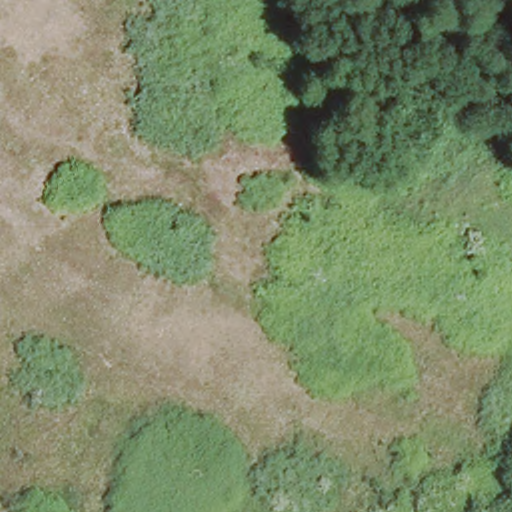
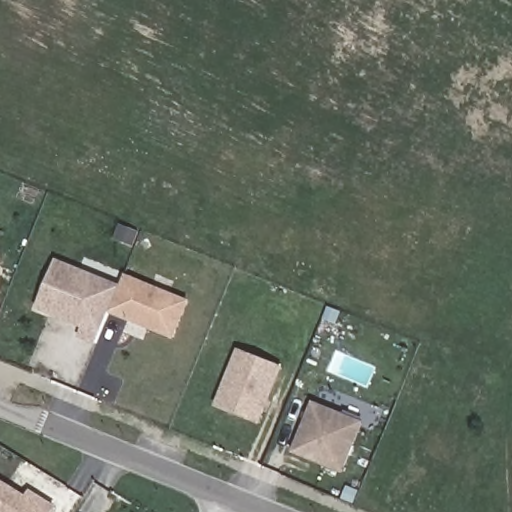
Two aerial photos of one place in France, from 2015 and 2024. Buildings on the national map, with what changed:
new [(35,310),(55,259),(120,286),(124,275),(189,301),(173,340),(108,314),(102,331),(96,344),(78,337),(81,327),(35,310)]
new [(259,425),(213,407),(236,348),(283,367),(259,425)]
new [(363,422),(341,473),(290,452),(312,402),(363,422)]
new [(0,480),(26,496),(29,489),(55,506),(52,512),(0,512),(0,480)]

